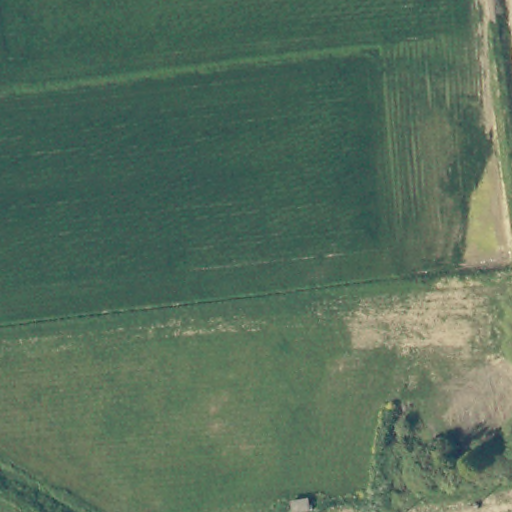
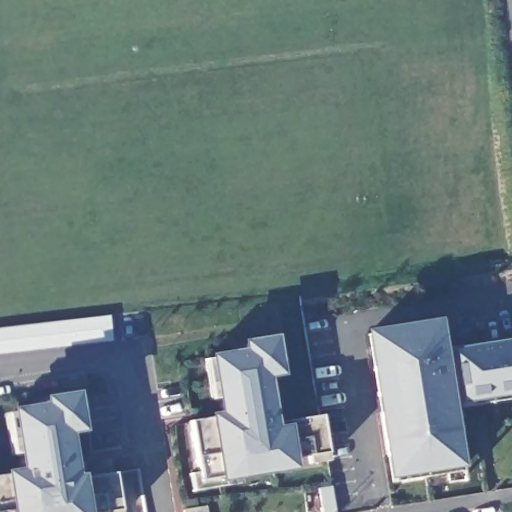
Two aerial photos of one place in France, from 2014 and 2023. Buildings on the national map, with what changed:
new [(0,354),(0,328),(109,315),(112,342),(0,354)]
new [(386,483),(361,331),(436,319),(460,470),(386,483)]
new [(328,462),(310,465),(309,456),(293,459),(295,470),(218,482),(217,478),(200,481),(188,420),(207,417),(215,415),(205,357),(241,351),(240,342),(275,335),(281,377),(266,380),(274,423),(320,415),(328,462)]
new [(460,405),(450,348),(512,338),(512,396),(460,405)]
new [(0,474),(1,473),(17,471),(9,412),(42,407),(41,400),(75,394),(82,433),(68,435),(74,475),(80,474),(81,480),(113,475),(119,512),(0,512),(0,474)]
new [(181,510),(206,506),(207,512),(182,512),(181,510)]

